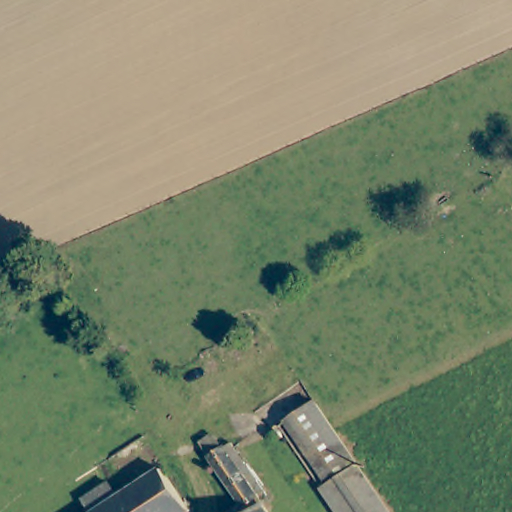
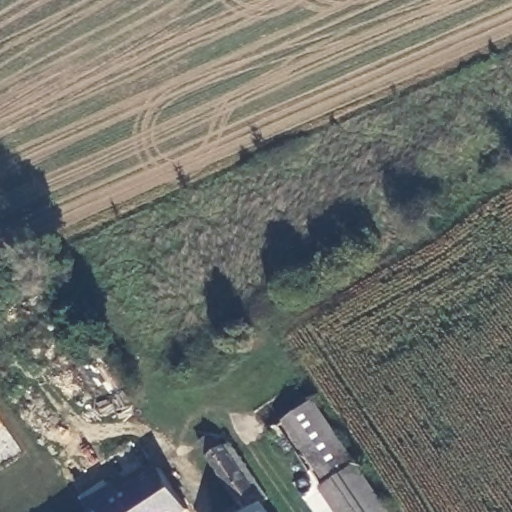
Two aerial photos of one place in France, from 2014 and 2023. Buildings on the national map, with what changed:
unchanged [(360,461),(323,483),(283,422),(320,399),(360,461)]
unchanged [(220,443),(227,446),(252,485),(270,512),(246,512),(247,511),(234,489),(202,441),(214,433),(220,443)]
unchanged [(323,483),(360,461),(392,512),(342,512),(323,483)]
unchanged [(85,499),(108,483),(118,498),(164,470),(188,508),(183,512),(92,512),(85,499)]

